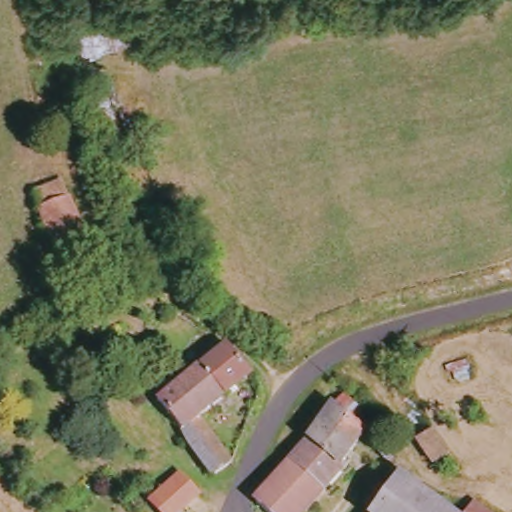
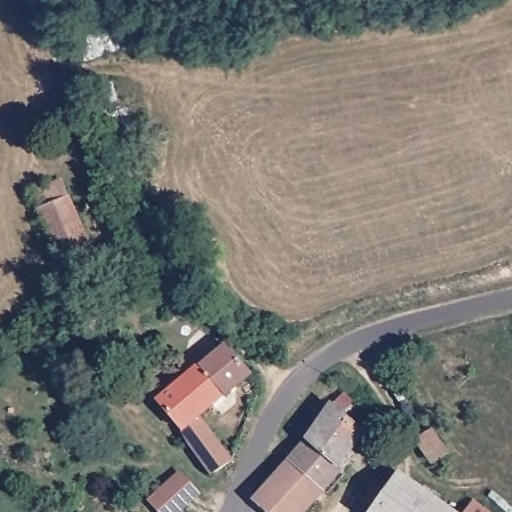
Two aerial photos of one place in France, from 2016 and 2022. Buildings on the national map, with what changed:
unchanged [(43,188),(64,180),(83,227),(84,232),(90,246),(68,256),(66,250),(61,238),(43,188)]
unchanged [(216,477),(191,445),(190,436),(160,397),(187,380),(219,357),(226,349),(255,375),(205,418),(236,460),(216,477)]
unchanged [(327,413),(336,401),(337,402),(348,387),(368,401),(356,416),(371,426),(346,458),(351,462),(309,512),(277,512),(260,497),(293,458),(327,413)]
unchanged [(403,472),(460,512),(372,512),(403,472)]
unchanged [(187,479),(203,497),(186,512),(160,512),(157,508),(187,479)]
unchanged [(479,501),(491,512),(470,512),(479,501)]

